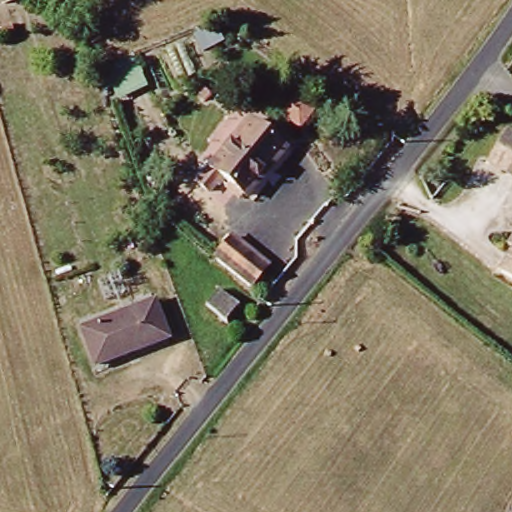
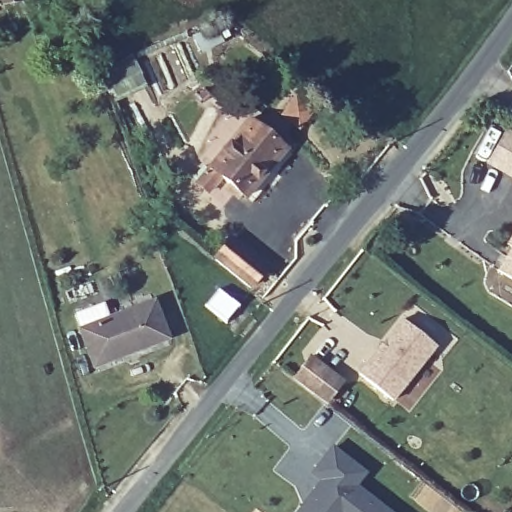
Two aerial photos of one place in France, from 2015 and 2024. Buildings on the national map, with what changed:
unchanged [(26,4),(2,5),(2,0),(26,0),(26,4)]
unchanged [(214,169),(250,123),(284,149),(247,196),(214,169)]
unchanged [(483,161),(501,131),(512,137),(512,177),(483,161)]
unchanged [(236,240),(270,267),(255,287),(220,260),(236,240)]
unchanged [(510,248),(512,245),(512,249),(510,248)]
unchanged [(501,275),(512,256),(512,281),(501,275)]
unchanged [(195,315),(210,297),(229,311),(214,330),(195,315)]
unchanged [(80,331),(152,303),(165,341),(94,368),(80,331)]
new [(402,320),(435,347),(392,401),(359,375),(402,320)]
new [(325,405),(313,395),(292,379),(308,359),(329,375),(341,384),(325,405)]
new [(322,481),(313,473),(332,448),(365,475),(356,486),(388,512),(297,512),(303,505),(322,481)]

